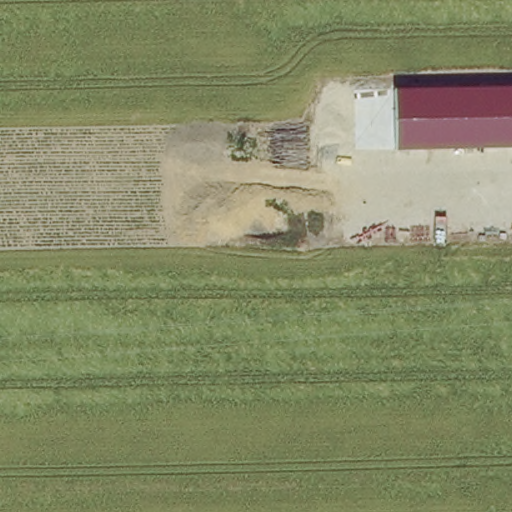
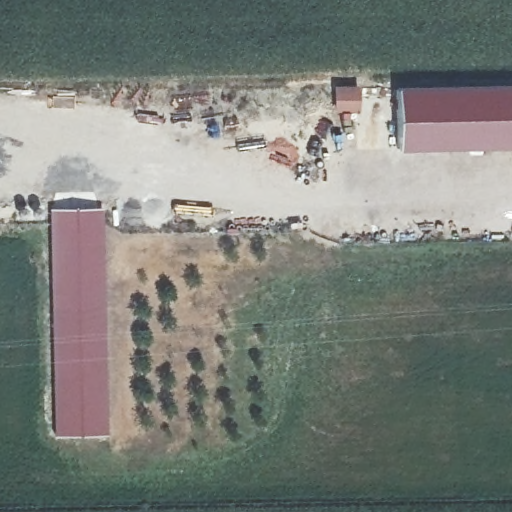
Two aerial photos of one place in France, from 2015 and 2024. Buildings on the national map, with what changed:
unchanged [(512,86),(512,148),(396,151),(395,89),(512,86)]
new [(338,112),(338,92),(358,92),(358,112),(338,112)]
new [(48,209),(101,208),(107,435),(54,435),(48,209)]

